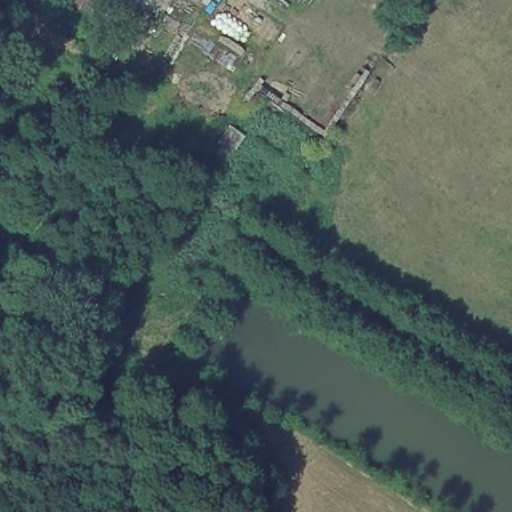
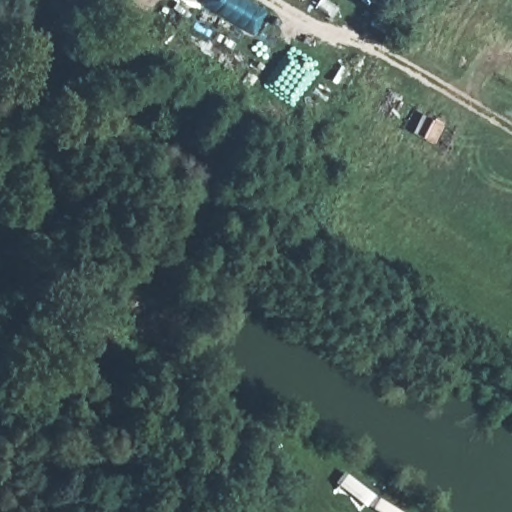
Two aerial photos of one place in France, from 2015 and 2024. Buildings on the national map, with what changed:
unchanged [(125,0),(112,33),(55,0),(125,0)]

